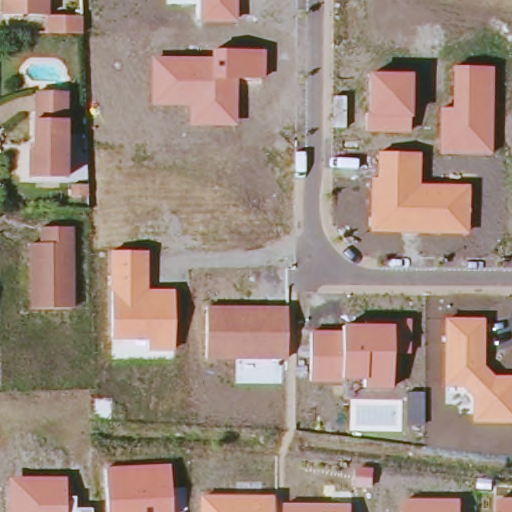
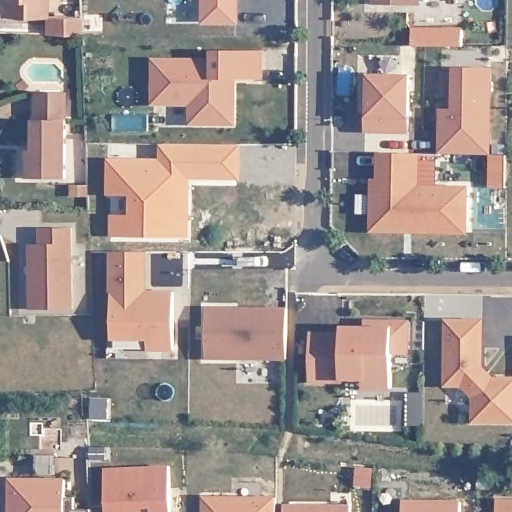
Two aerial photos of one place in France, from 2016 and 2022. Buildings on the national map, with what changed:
unchanged [(47,17),(5,17),(5,0),(47,0),(47,17)]
unchanged [(237,21),(200,19),(200,0),(237,0),(237,21)]
new [(420,3),(373,3),(373,0),(420,0),(420,3)]
new [(412,45),(413,28),(464,27),(464,45),(412,45)]
unchanged [(210,58),(211,48),(265,50),(265,80),(237,78),(237,124),(190,123),(189,108),(150,106),(151,56),(210,58)]
unchanged [(492,68),(491,153),(440,150),(440,108),(453,108),(453,66),(492,68)]
unchanged [(410,74),(410,134),(366,132),(368,73),(410,74)]
unchanged [(71,183),(32,183),(32,155),(38,155),(40,98),(71,98),(71,183)]
new [(237,174),(187,174),(186,185),(186,217),(186,237),(112,234),(112,217),(129,216),(129,195),(108,195),(107,158),(159,158),(160,144),(237,144),(237,174)]
unchanged [(378,178),(378,152),(421,154),(420,185),(468,186),(467,234),(370,231),(370,178),(378,178)]
unchanged [(80,313),(40,313),(40,248),(48,248),(48,232),(80,233),(80,313)]
unchanged [(147,251),(148,290),(173,291),(174,352),(146,351),(146,338),(111,338),(110,250),(147,251)]
unchanged [(286,307),(287,358),(206,356),(206,306),(286,307)]
unchanged [(343,333),(344,324),(391,323),(391,318),(410,318),(410,356),(394,355),(393,388),(364,388),(364,379),(345,379),(310,380),(311,332),(343,333)]
unchanged [(485,366),(495,376),(512,376),(512,423),(471,421),(472,399),(461,386),(445,386),(445,319),(485,320),(485,366)]
unchanged [(173,512),(107,512),(105,467),(170,465),(173,512)]
unchanged [(67,497),(76,497),(75,507),(92,508),(93,512),(8,512),(8,476),(67,478),(67,497)]
unchanged [(276,512),(203,512),(203,495),(275,496),(276,512)]
unchanged [(461,512),(402,512),(402,498),(461,500),(461,512)]
unchanged [(512,500),(512,512),(499,512),(499,499),(512,500)]
unchanged [(352,512),(286,512),(286,502),(352,503),(352,512)]

